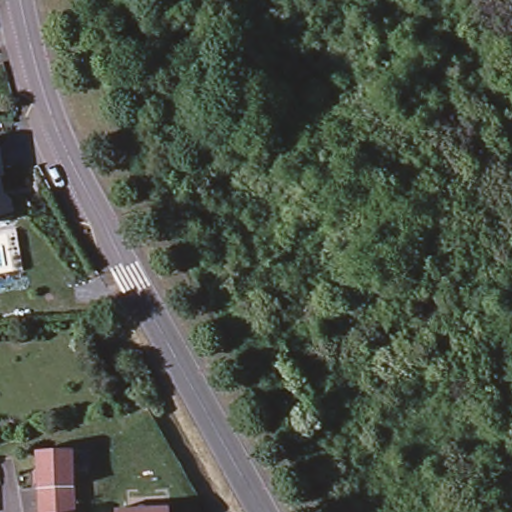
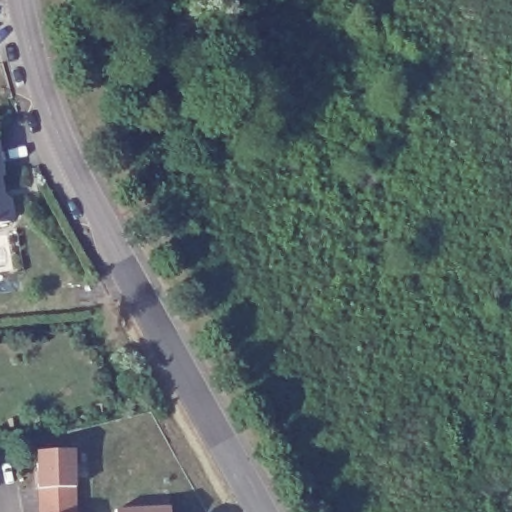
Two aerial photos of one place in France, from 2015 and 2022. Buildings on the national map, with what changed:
unchanged [(0,174),(4,195),(6,195),(10,199),(11,208),(10,218),(0,219),(0,148),(4,173),(0,174)]
unchanged [(36,452),(40,452),(73,451),(75,512),(38,512),(36,452)]
unchanged [(114,510),(128,509),(169,508),(169,512),(115,512),(114,510)]

